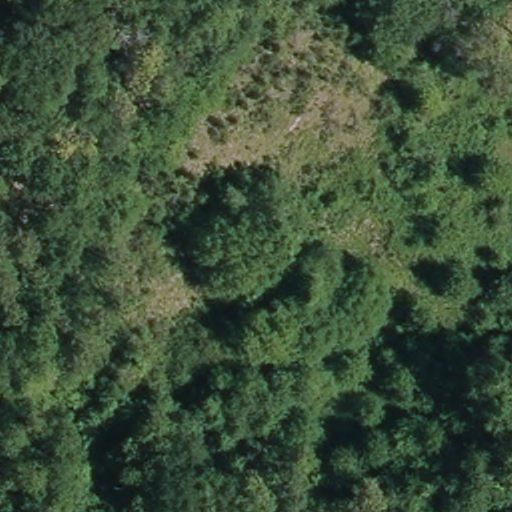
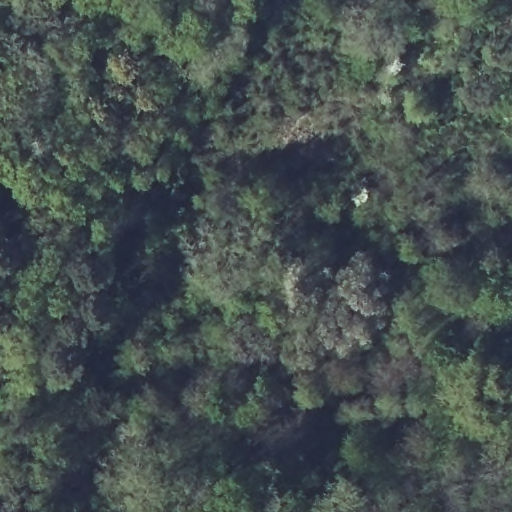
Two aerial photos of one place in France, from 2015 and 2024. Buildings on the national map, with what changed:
[]

